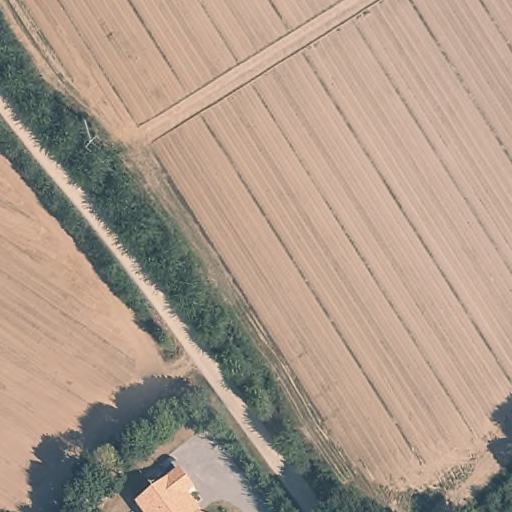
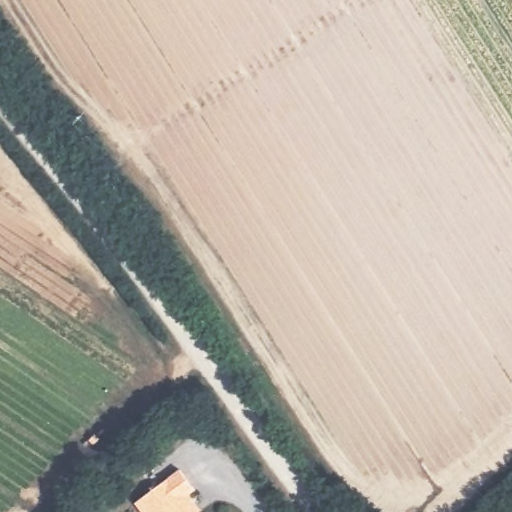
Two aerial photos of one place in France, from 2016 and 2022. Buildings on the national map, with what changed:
unchanged [(195,492),(190,497),(200,512),(141,512),(135,503),(179,470),(195,492)]

